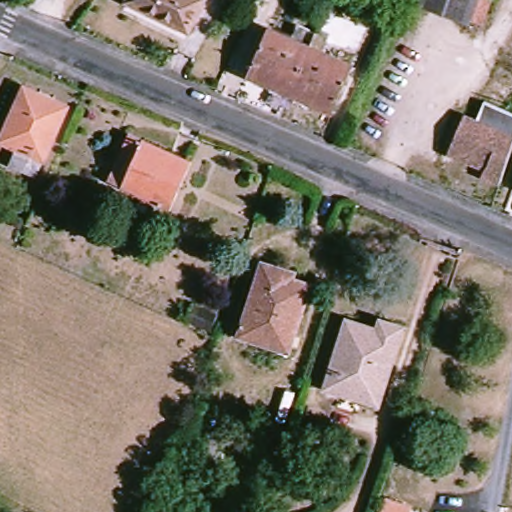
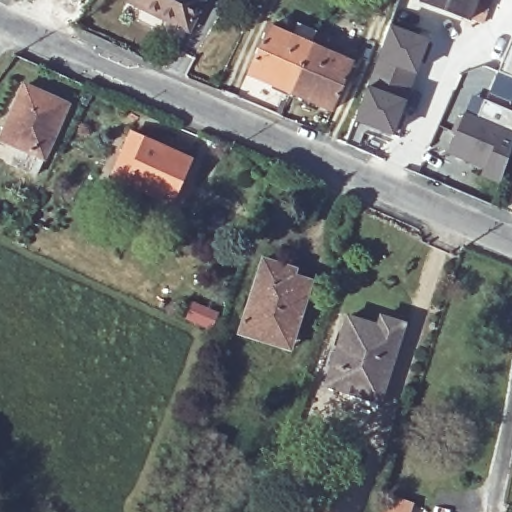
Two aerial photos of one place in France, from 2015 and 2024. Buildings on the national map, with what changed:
unchanged [(194,29),(132,3),(133,0),(205,0),(194,29)]
unchanged [(476,25),(426,5),(427,0),(484,0),(476,25)]
new [(389,25),(429,40),(407,100),(367,85),(389,25)]
unchanged [(248,75),(267,30),(308,49),(290,94),(248,75)]
unchanged [(308,49),(352,68),(333,114),(290,94),(308,49)]
new [(367,85),(407,100),(392,137),(353,121),(367,85)]
unchanged [(36,176),(10,165),(17,149),(0,141),(0,139),(24,87),(68,107),(36,176)]
unchanged [(451,154),(461,121),(474,126),(481,106),(512,116),(512,140),(497,184),(479,178),(481,170),(465,165),(448,159),(451,154)]
unchanged [(132,135),(190,160),(170,205),(112,180),(132,135)]
unchanged [(257,339),(239,332),(262,260),(293,269),(292,276),(309,281),(288,348),(257,339)]
unchanged [(346,316),(377,325),(379,317),(402,325),(377,401),(325,383),(346,316)]
unchanged [(208,430),(227,435),(218,462),(200,456),(208,430)]
unchanged [(412,512),(382,512),(387,495),(414,505),(412,512)]

